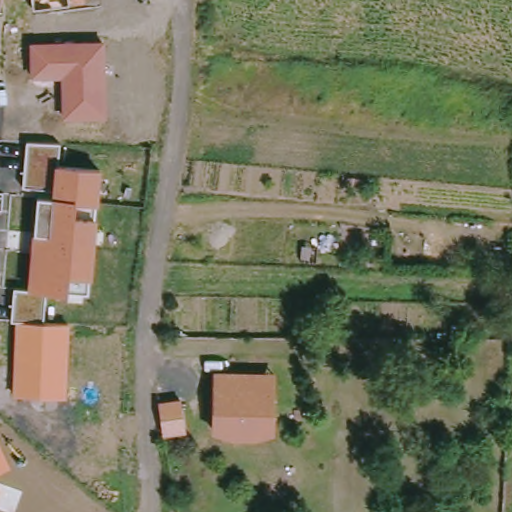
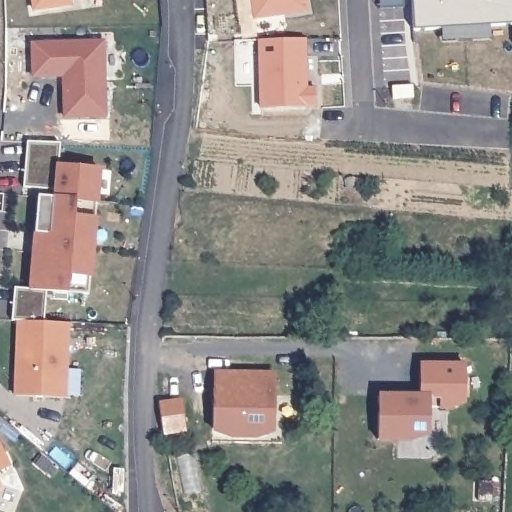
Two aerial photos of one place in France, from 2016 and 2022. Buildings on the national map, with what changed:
unchanged [(70,2),(33,6),(32,0),(70,0),(70,2)]
new [(306,11),(255,19),(252,0),(305,0),(306,11)]
new [(405,8),(381,9),(380,0),(404,0),(405,8)]
new [(490,27),(490,40),(441,42),(441,30),(413,31),(411,0),(512,0),(512,25),(490,27)]
new [(261,107),(260,41),(312,40),(315,105),(261,107)]
unchanged [(104,42),(107,118),(64,118),(62,77),(33,78),(30,43),(104,42)]
unchanged [(15,287),(29,287),(32,237),(37,197),(51,197),(51,191),(22,189),(28,142),(59,145),(58,166),(100,169),(96,208),(95,208),(91,280),(88,279),(87,292),(66,289),(66,295),(45,293),(43,325),(68,324),(67,400),(13,397),(14,323),(15,287)]
unchanged [(275,372),(271,434),(255,441),(231,439),(211,434),(213,370),(275,372)]
new [(377,394),(429,394),(430,436),(417,441),(378,441),(377,394)]
unchanged [(0,471),(0,441),(12,466),(0,471)]

